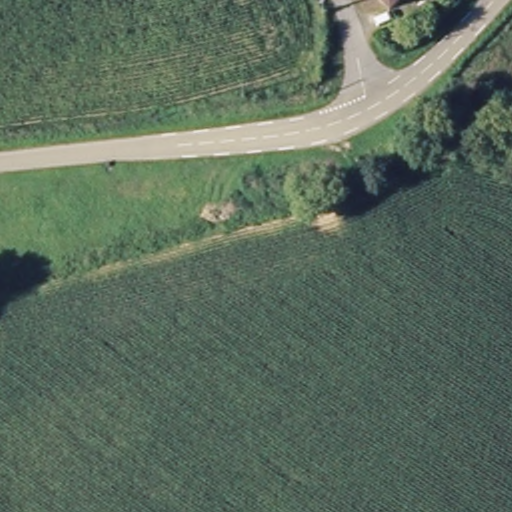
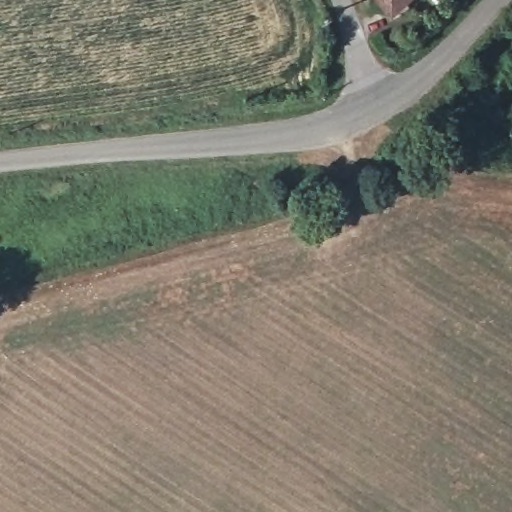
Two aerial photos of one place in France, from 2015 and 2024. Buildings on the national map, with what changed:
unchanged [(383,0),(413,0),(394,14),(383,0)]

